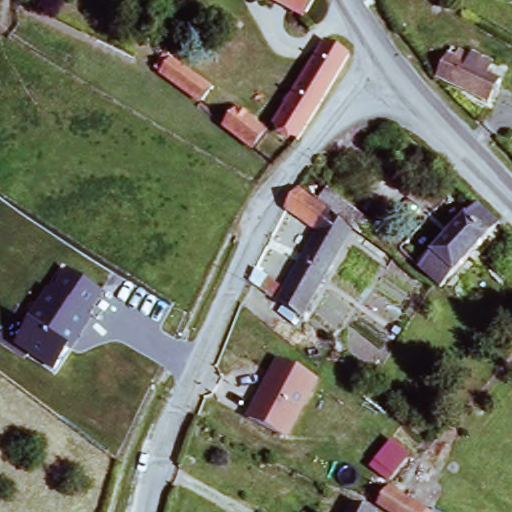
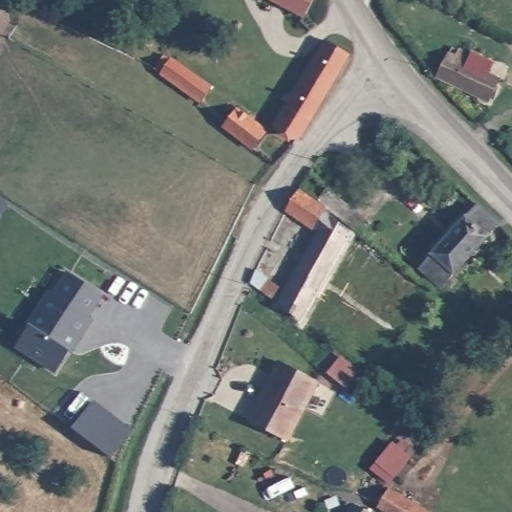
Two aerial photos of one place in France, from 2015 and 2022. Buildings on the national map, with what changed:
unchanged [(299,0),(310,0),(313,6),(299,0)]
unchanged [(273,123),(327,40),(330,34),(337,38),(332,46),(345,54),(295,136),(273,123)]
unchanged [(448,56),(456,58),(462,48),(473,56),(475,49),(495,60),(488,78),(496,82),(484,104),(438,77),(448,56)]
unchanged [(155,75),(165,57),(207,79),(195,100),(155,75)]
unchanged [(236,105),(262,123),(247,147),(220,130),(236,105)]
unchanged [(294,283),(320,235),(285,216),(299,188),(318,205),(321,194),(370,224),(363,235),(355,229),(300,313),(255,285),(264,267),(294,283)]
unchanged [(485,233),(445,277),(427,260),(465,216),(485,233)]
unchanged [(89,320),(93,322),(60,373),(20,347),(69,273),(102,295),(89,320)]
unchanged [(248,422),(279,363),(319,385),(288,443),(248,422)]
new [(92,401),(130,430),(110,456),(72,427),(92,401)]
unchanged [(410,455),(386,481),(370,467),(392,440),(410,455)]
unchanged [(394,486),(434,512),(391,512),(382,506),(394,486)]
unchanged [(352,503),(367,512),(347,512),(352,503)]

